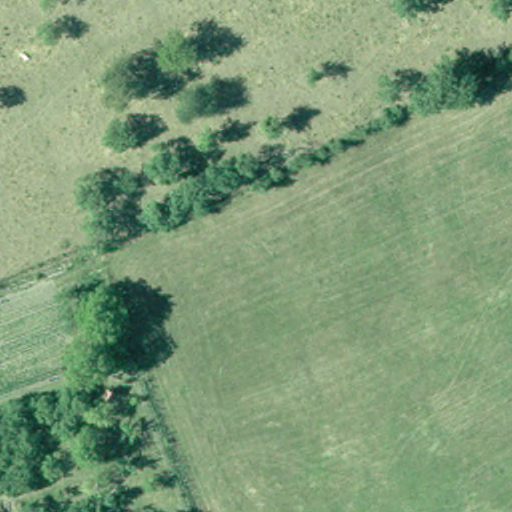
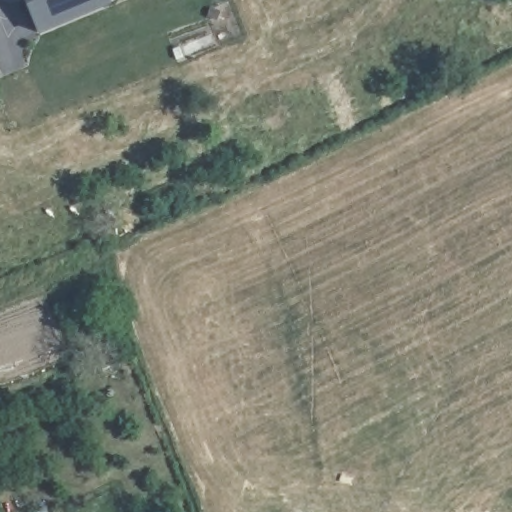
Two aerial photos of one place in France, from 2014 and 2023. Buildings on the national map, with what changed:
new [(110,5),(37,35),(24,0),(109,0),(110,5)]

